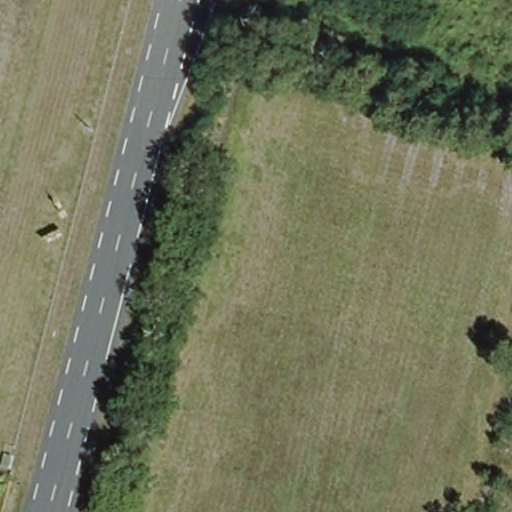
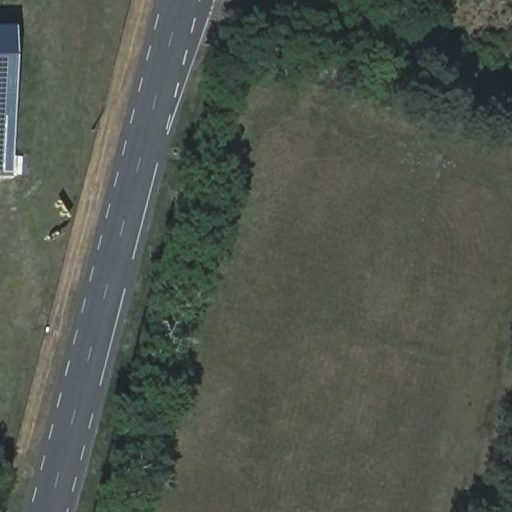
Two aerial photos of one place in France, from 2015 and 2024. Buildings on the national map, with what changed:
new [(12,25),(11,176),(0,176),(0,25),(12,25)]

